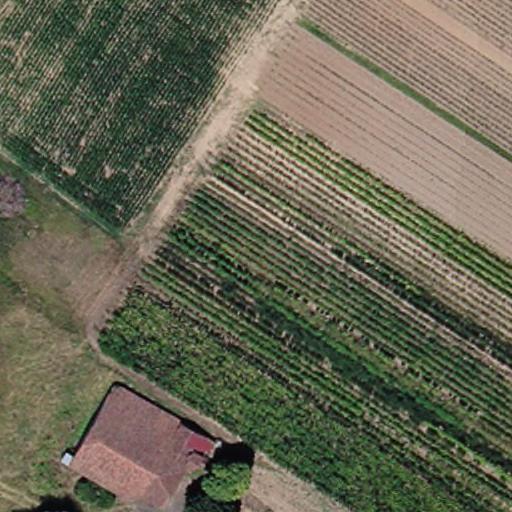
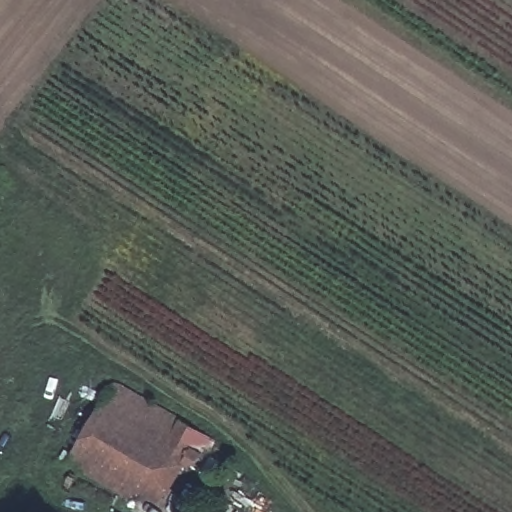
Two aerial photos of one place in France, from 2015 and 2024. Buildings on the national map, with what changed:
unchanged [(210,468),(192,457),(162,499),(146,490),(135,500),(76,464),(124,386),(222,444),(210,468)]

